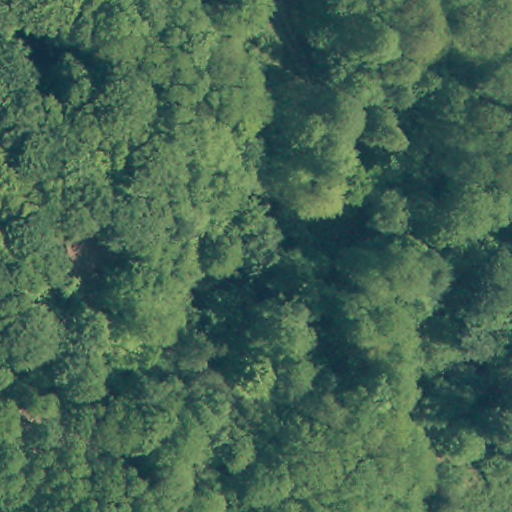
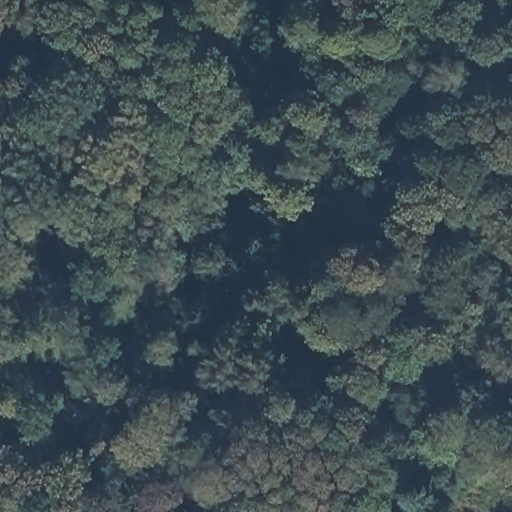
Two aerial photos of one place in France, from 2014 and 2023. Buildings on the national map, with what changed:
unchanged [(257,73),(235,131),(213,123),(237,62),(257,73)]
unchanged [(355,242),(366,241),(370,283),(357,284),(355,242)]
unchanged [(355,403),(387,398),(392,421),(359,426),(355,403)]

